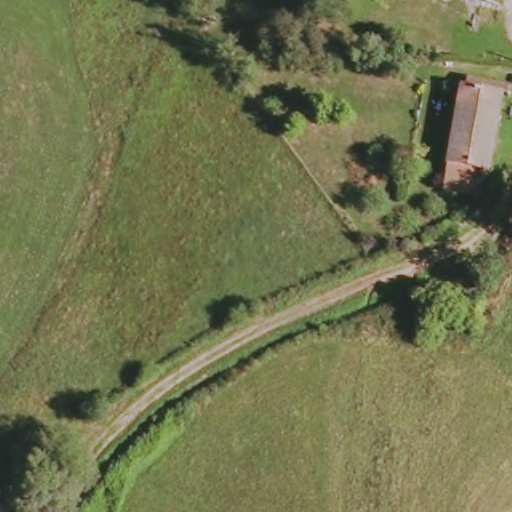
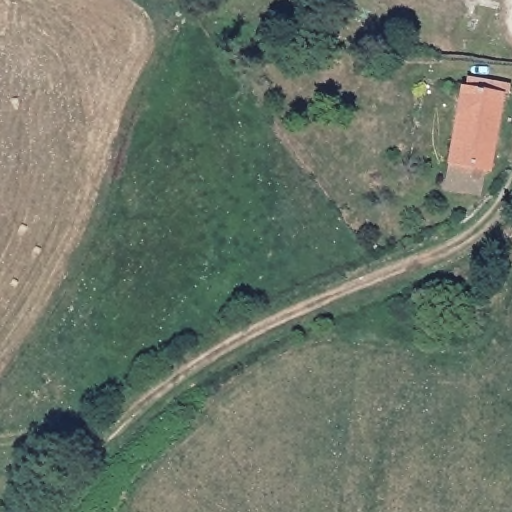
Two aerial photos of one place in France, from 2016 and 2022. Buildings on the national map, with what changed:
unchanged [(482,2),(475,0),(482,0),(482,2)]
unchanged [(451,185),(454,174),(469,85),(510,93),(496,169),(489,169),(486,181),(485,194),(451,185)]

